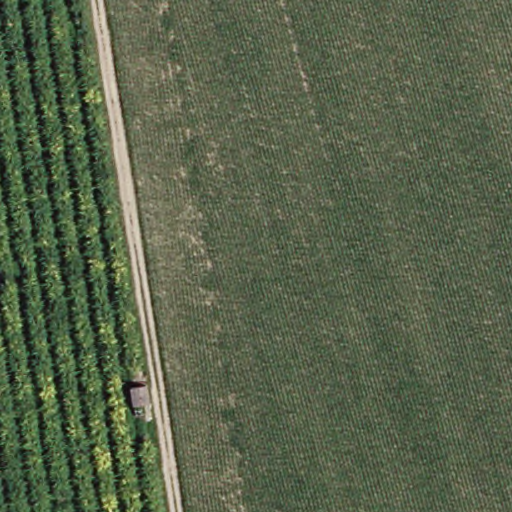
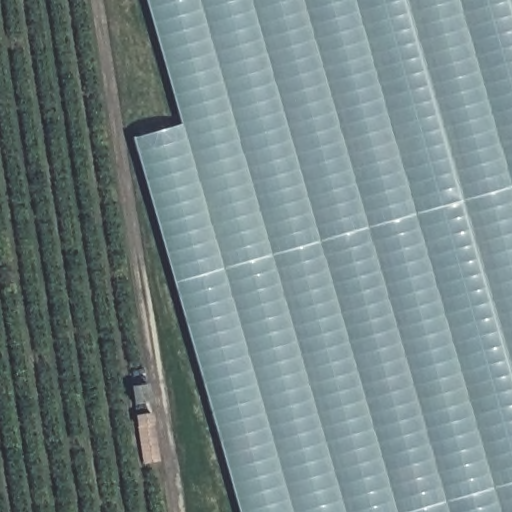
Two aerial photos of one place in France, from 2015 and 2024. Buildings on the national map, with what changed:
new [(238,512),(132,140),(181,125),(145,0),(512,0),(512,512),(238,512)]
unchanged [(150,383),(153,407),(131,411),(129,387),(150,383)]
new [(136,417),(155,415),(161,462),(144,465),(136,417)]

